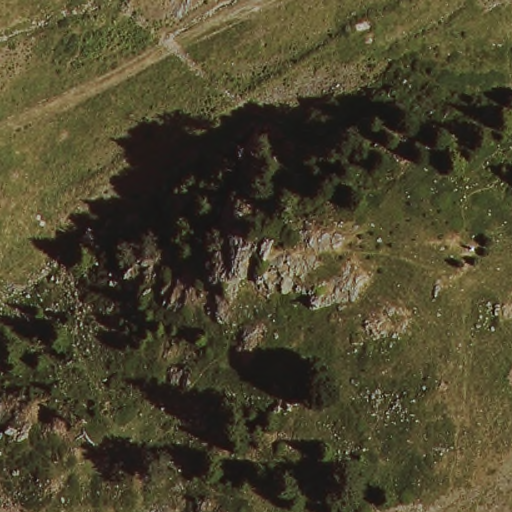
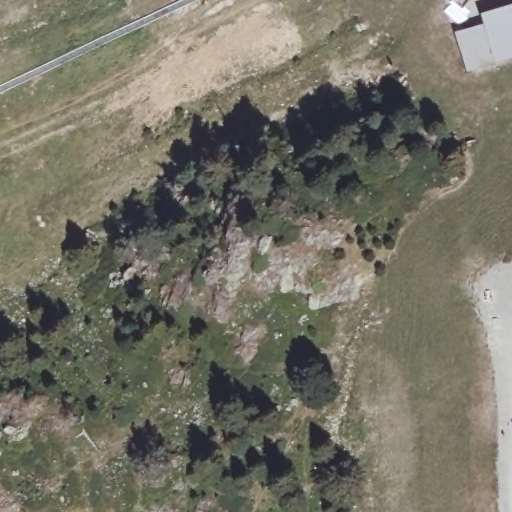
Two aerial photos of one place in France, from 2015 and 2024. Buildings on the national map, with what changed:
new [(467,72),(456,34),(485,26),(482,16),(512,7),(512,58),(467,72)]

